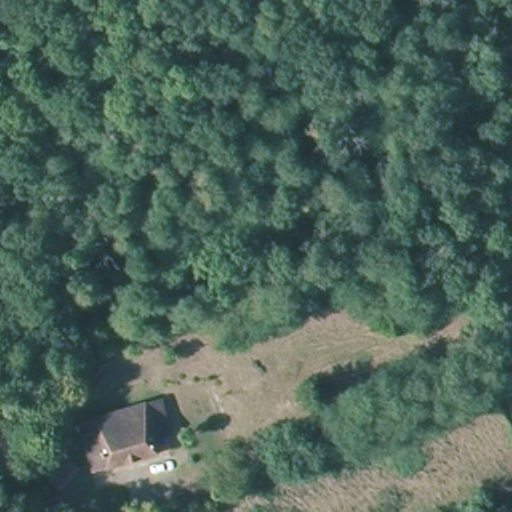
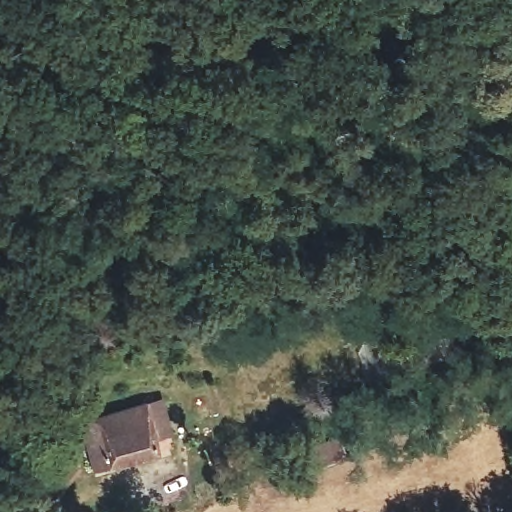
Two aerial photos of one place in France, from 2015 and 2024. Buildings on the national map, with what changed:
unchanged [(160,402),(167,427),(151,433),(155,453),(90,472),(79,426),(143,407),(160,402)]

